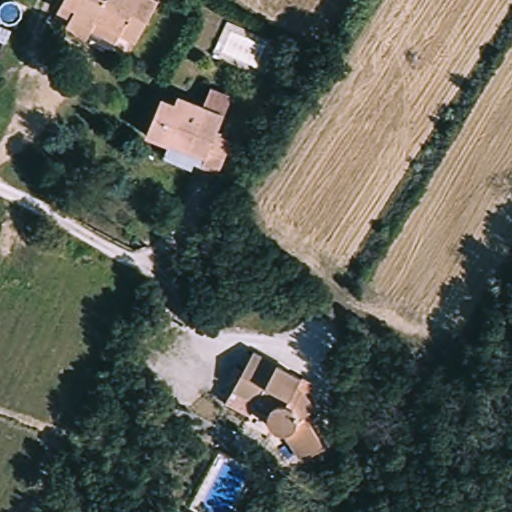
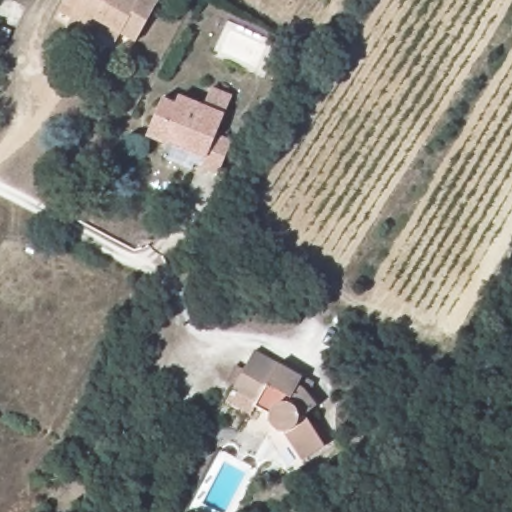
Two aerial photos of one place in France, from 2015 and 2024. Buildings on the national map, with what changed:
unchanged [(140,41),(101,20),(94,26),(79,19),(77,14),(79,9),(66,2),(67,0),(162,0),(140,41)]
unchanged [(183,104),(188,92),(232,112),(225,129),(238,135),(224,167),(211,162),(216,151),(181,137),(173,147),(154,137),(168,101),(183,104)]
unchanged [(290,431),(289,432),(288,431),(279,431),(275,429),(273,426),(271,421),(270,415),(271,411),(256,403),(259,397),(235,385),(250,351),(299,377),(298,383),(301,385),(290,431)]
unchanged [(302,456),(289,433),(289,432),(301,385),(306,385),(318,403),(306,412),(324,443),(302,456)]

